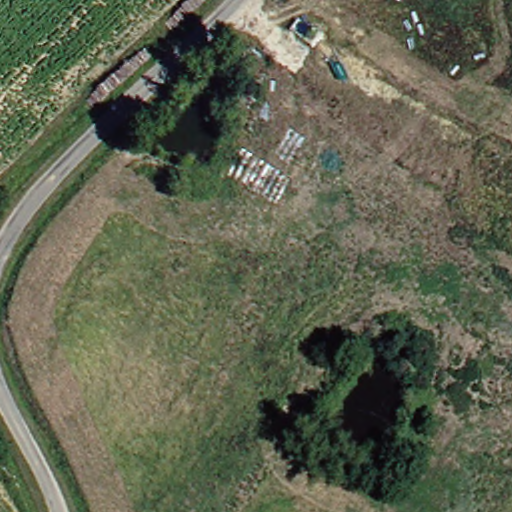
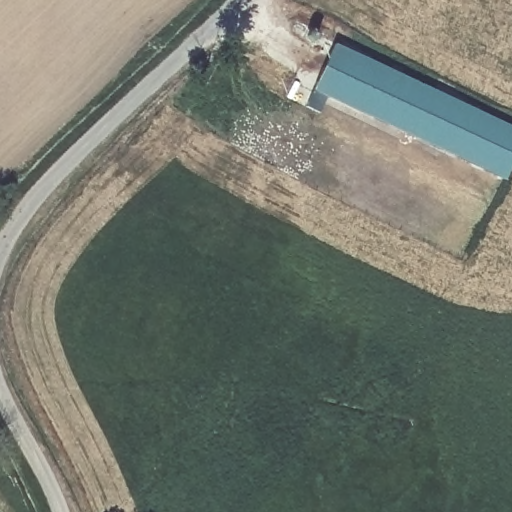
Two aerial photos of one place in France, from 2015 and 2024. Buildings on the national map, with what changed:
demolished [(295,84),(319,45),(468,137),(443,181),(295,84)]
new [(512,127),(512,163),(504,182),(311,91),(334,46),(512,127)]

